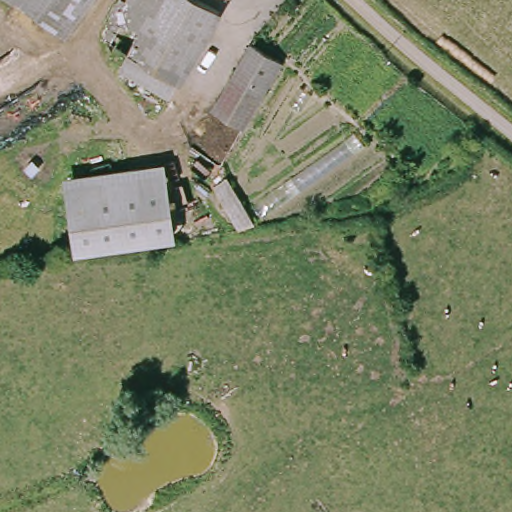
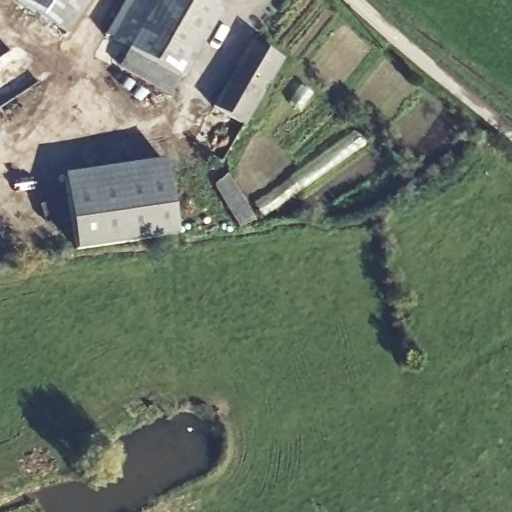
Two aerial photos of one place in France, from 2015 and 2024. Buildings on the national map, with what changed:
unchanged [(72,29),(18,0),(88,0),(72,29)]
unchanged [(132,82),(139,63),(114,53),(134,0),(220,0),(204,40),(208,42),(186,96),(184,102),(150,89),(132,82)]
unchanged [(268,50),(244,115),(233,111),(214,104),(220,86),(239,38),(268,50)]
unchanged [(355,133),(364,147),(263,219),(254,204),(355,133)]
unchanged [(175,236),(75,252),(63,176),(165,161),(175,236)]
unchanged [(254,224),(238,230),(212,186),(227,176),(254,224)]

